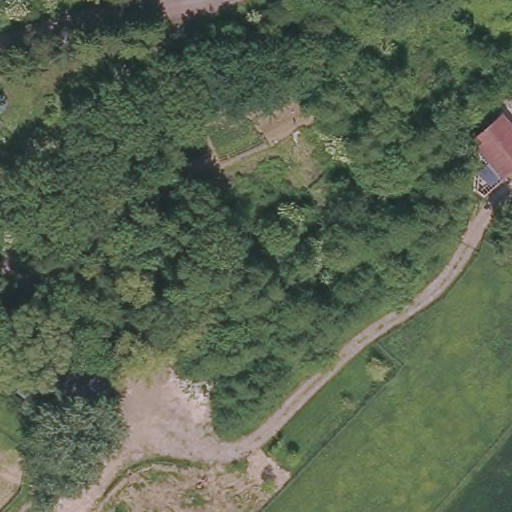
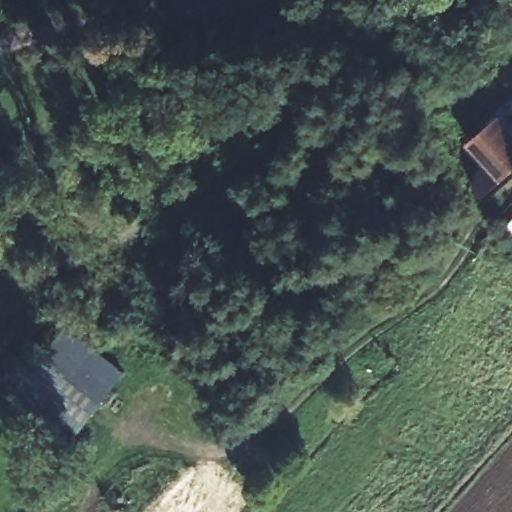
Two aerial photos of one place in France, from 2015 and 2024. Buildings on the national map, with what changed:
unchanged [(498,116),(512,132),(512,167),(501,176),(468,140),(498,116)]
new [(72,334),(74,331),(126,372),(75,437),(16,391),(65,329),(72,334)]

